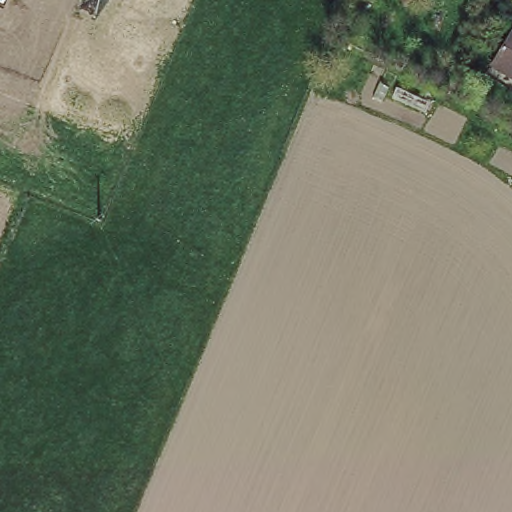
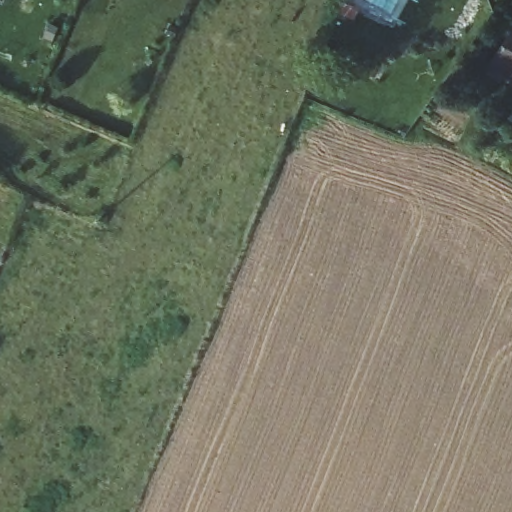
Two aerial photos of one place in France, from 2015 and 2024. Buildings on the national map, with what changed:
unchanged [(512,33),(512,72),(495,61),(512,33)]

